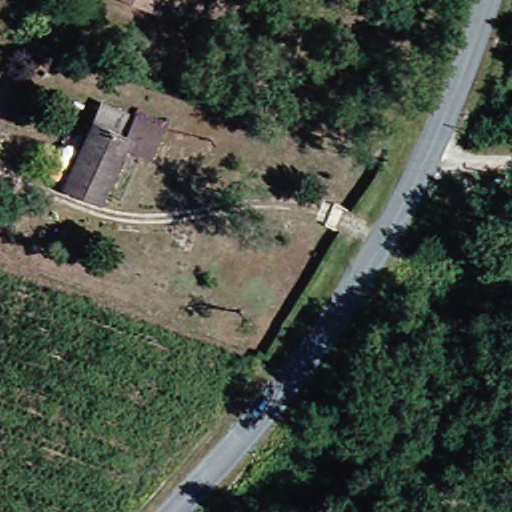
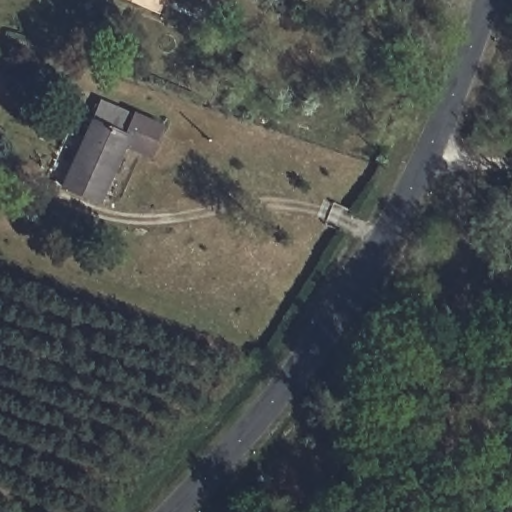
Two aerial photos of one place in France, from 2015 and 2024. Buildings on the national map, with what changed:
unchanged [(153,12),(121,0),(157,0),(153,12)]
unchanged [(158,158),(116,142),(95,196),(51,179),(83,99),(133,117),(138,104),(175,118),(158,158)]

